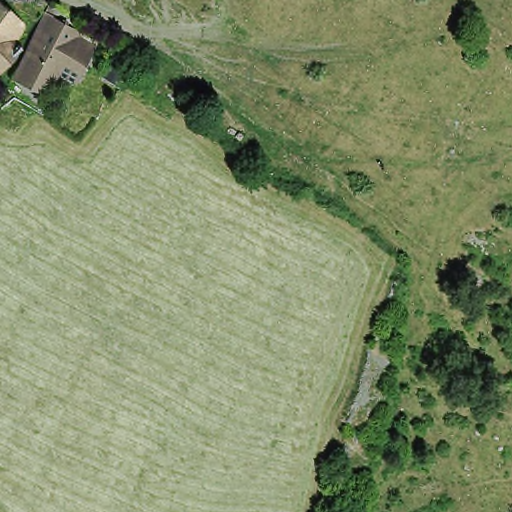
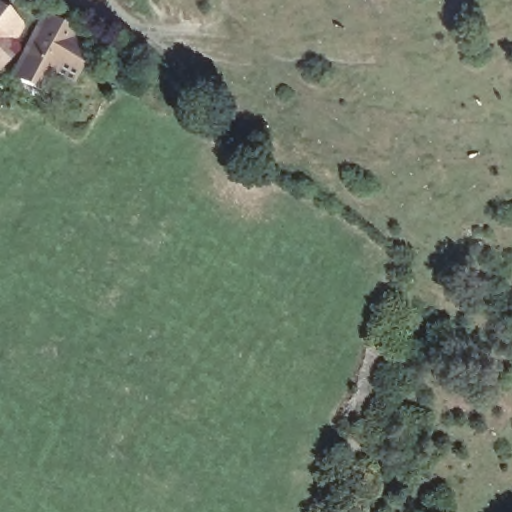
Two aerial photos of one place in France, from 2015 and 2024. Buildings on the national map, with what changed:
unchanged [(0,71),(0,6),(22,26),(21,35),(14,44),(19,49),(0,71)]
unchanged [(54,78),(43,98),(10,79),(46,18),(57,24),(59,20),(65,23),(63,27),(77,34),(76,40),(92,48),(80,71),(75,78),(70,87),(54,78)]

